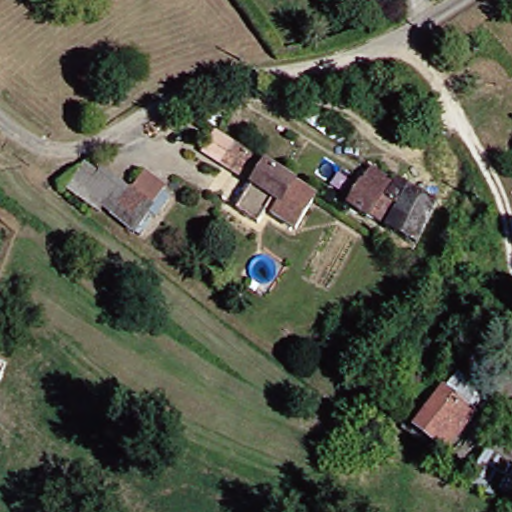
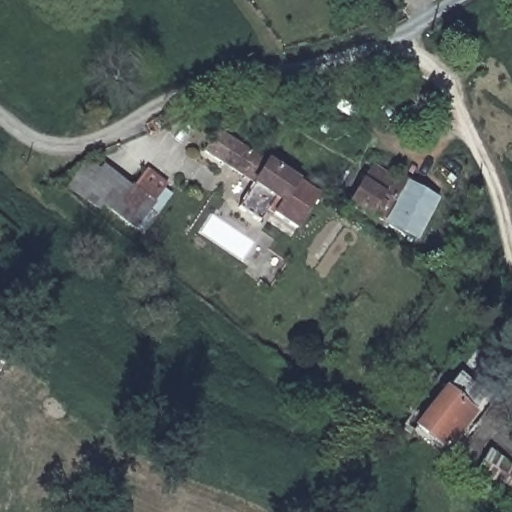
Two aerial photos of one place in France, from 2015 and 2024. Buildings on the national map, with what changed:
unchanged [(231,146),(311,195),(290,229),(268,214),(277,201),(270,196),(253,221),(232,206),(247,182),(219,165),(231,146)]
unchanged [(121,190),(124,186),(146,205),(128,229),(97,203),(94,207),(65,187),(82,163),(121,190)]
unchanged [(386,184),(378,196),(382,199),(391,203),(379,225),(366,218),(365,220),(345,207),(366,171),(386,184)]
unchanged [(393,180),(434,205),(409,244),(379,225),(391,203),(382,199),(393,180)]
unchanged [(506,365),(512,354),(512,368),(506,365)]
unchanged [(444,388),(459,372),(486,393),(473,411),(474,412),(442,455),(412,433),(417,426),(416,425),(444,388)]
unchanged [(512,477),(512,505),(471,480),(485,456),(504,469),(512,477)]

